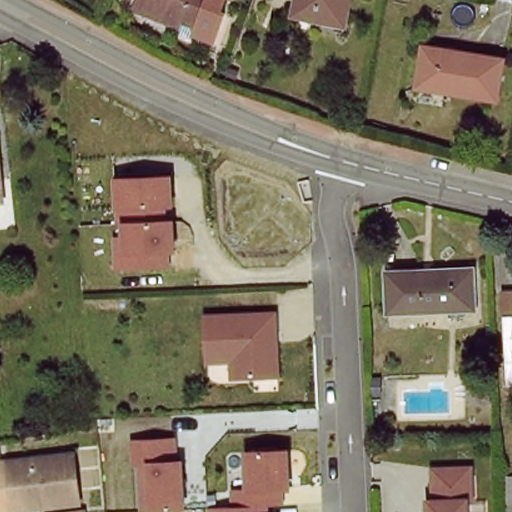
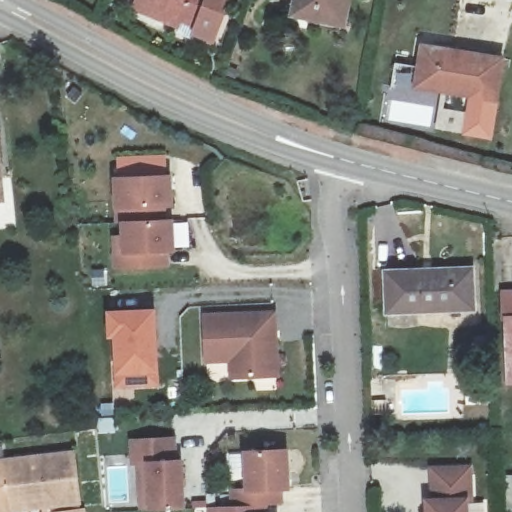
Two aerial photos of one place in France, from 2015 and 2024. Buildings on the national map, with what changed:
unchanged [(224,19),(210,15),(203,28),(190,22),(185,34),(165,25),(168,14),(141,5),(144,0),(231,0),(224,19)]
unchanged [(298,0),(345,0),(345,25),(296,20),(298,0)]
unchanged [(421,41),(506,55),(499,98),(414,82),(421,41)]
unchanged [(10,204),(0,205),(0,134),(1,134),(10,204)]
unchanged [(173,175),(173,207),(166,209),(165,220),(175,220),(176,252),(168,252),(170,268),(113,270),(112,237),(115,236),(113,206),(113,177),(173,175)]
unchanged [(387,270),(473,267),(474,310),(388,310),(387,270)]
unchanged [(506,378),(503,313),(512,301),(512,378),(506,378)]
new [(117,388),(116,376),(115,338),(108,338),(106,311),(156,308),(160,373),(160,386),(117,388)]
unchanged [(240,365),(215,365),(213,321),(283,320),(285,380),(250,381),(240,381),(240,365)]
unchanged [(177,460),(183,460),(186,510),(149,510),(140,510),(138,468),(131,468),(130,439),(176,438),(177,460)]
unchanged [(281,491),(285,504),(269,505),(269,512),(209,512),(208,508),(230,507),(229,480),(243,480),(243,450),(288,450),(290,490),(281,491)]
unchanged [(51,511),(43,505),(36,512),(34,512),(20,501),(11,512),(0,512),(0,469),(81,460),(87,507),(51,511)]
unchanged [(476,505),(471,505),(471,512),(432,512),(432,505),(439,505),(437,473),(475,472),(476,505)]

